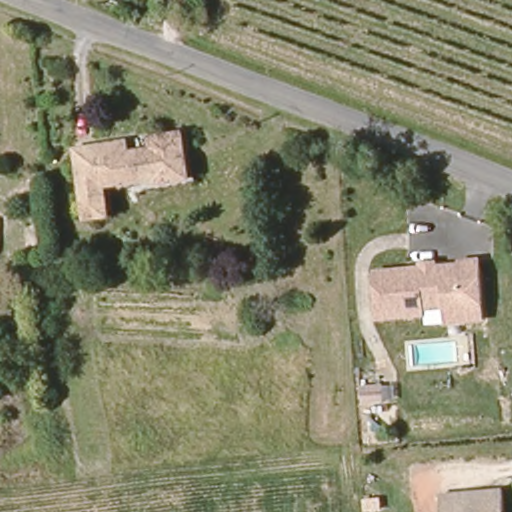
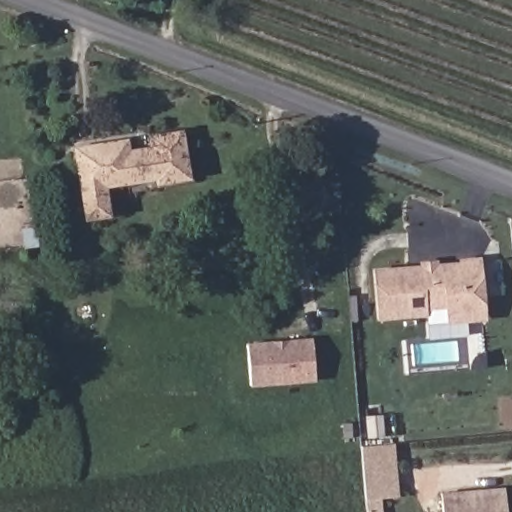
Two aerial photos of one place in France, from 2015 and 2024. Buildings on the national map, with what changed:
unchanged [(129,152),(152,150),(153,139),(183,137),(188,183),(102,185),(103,215),(81,215),(76,144),(129,141),(129,152)]
unchanged [(446,309),(426,311),(427,317),(379,321),(375,274),(461,265),(460,262),(480,261),(486,320),(466,322),(447,324),(446,309)]
new [(252,387),(248,343),(312,338),(315,381),(252,387)]
new [(397,499),(383,500),(384,512),(369,512),(364,448),(393,446),(397,499)]
unchanged [(508,512),(446,512),(444,493),(506,487),(508,512)]

